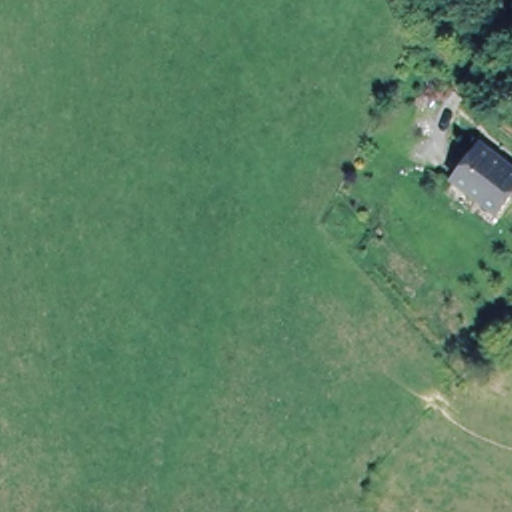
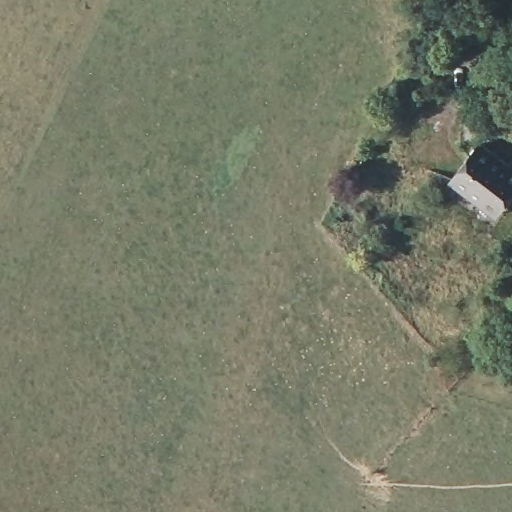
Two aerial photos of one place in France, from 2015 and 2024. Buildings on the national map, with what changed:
unchanged [(512,180),(485,212),(445,176),(478,134),(512,165),(512,180)]

